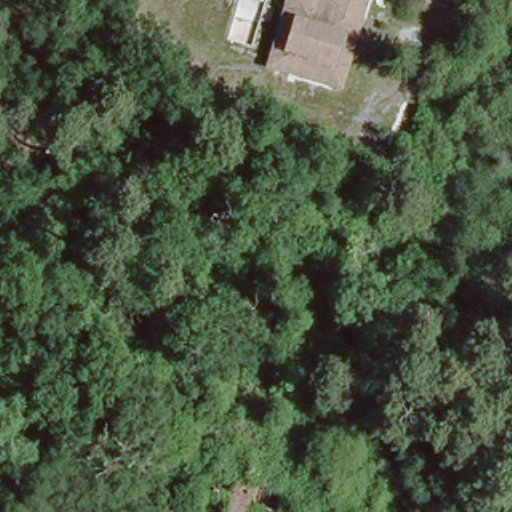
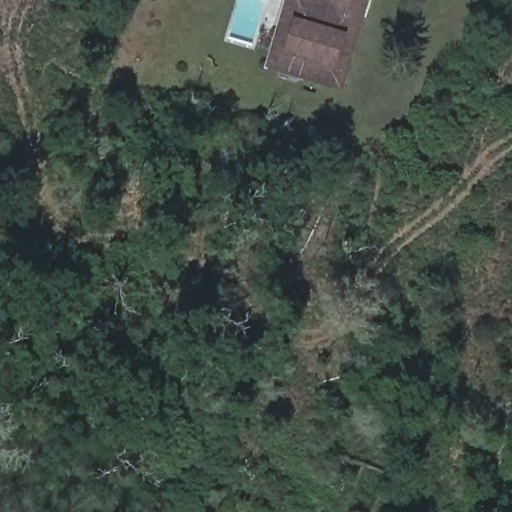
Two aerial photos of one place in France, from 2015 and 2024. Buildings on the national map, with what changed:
unchanged [(344,93),(266,71),(287,0),(372,0),(344,93)]

